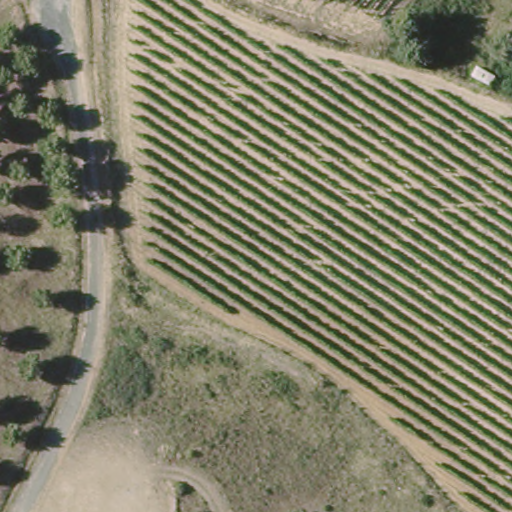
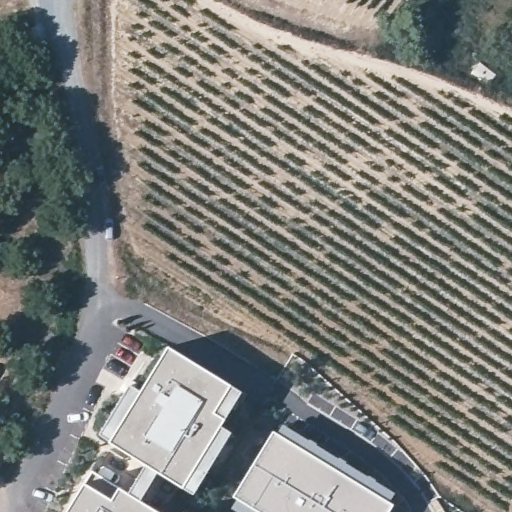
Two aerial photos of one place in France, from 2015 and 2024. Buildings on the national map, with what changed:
unchanged [(498,75),(492,88),(472,78),(478,65),(498,75)]
new [(92,473),(120,490),(137,461),(109,444),(111,442),(101,436),(122,401),(133,408),(168,350),(242,395),(218,433),(228,439),(193,496),(155,473),(138,501),(156,512),(68,512),(92,473)]
new [(397,494),(391,504),(394,505),(390,512),(239,512),(231,507),(236,498),(233,496),(273,431),(277,434),(284,424),(397,494)]

